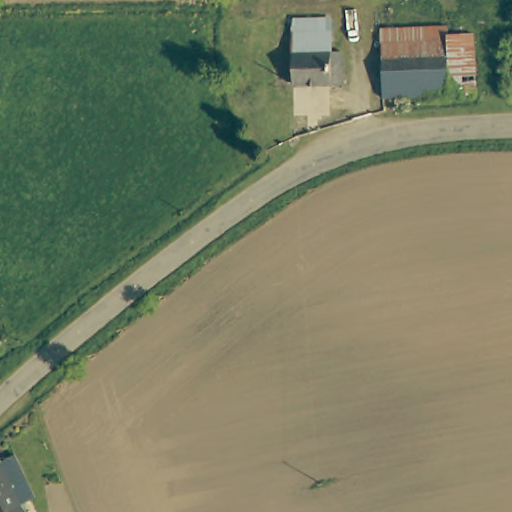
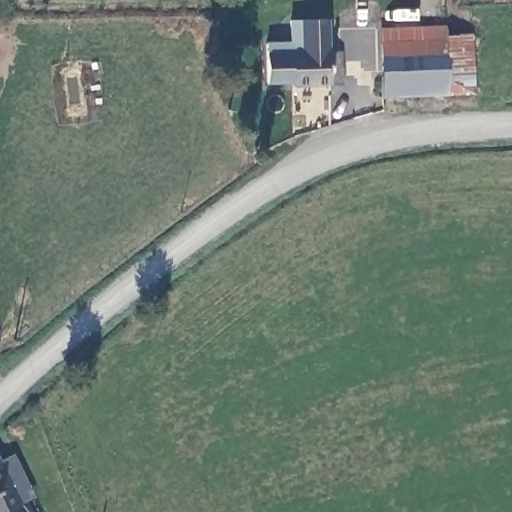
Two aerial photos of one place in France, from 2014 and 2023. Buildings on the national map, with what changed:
unchanged [(337,16),(337,51),(347,84),(270,84),(272,52),(296,51),(295,17),(337,16)]
unchanged [(376,30),(466,29),(469,94),(377,100),(376,30)]
unchanged [(19,512),(0,512),(0,460),(19,512)]

